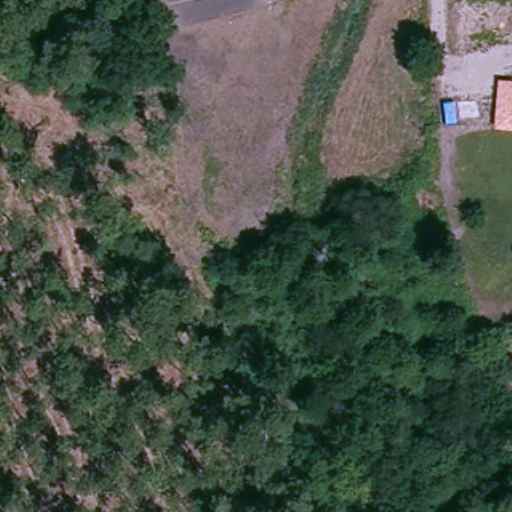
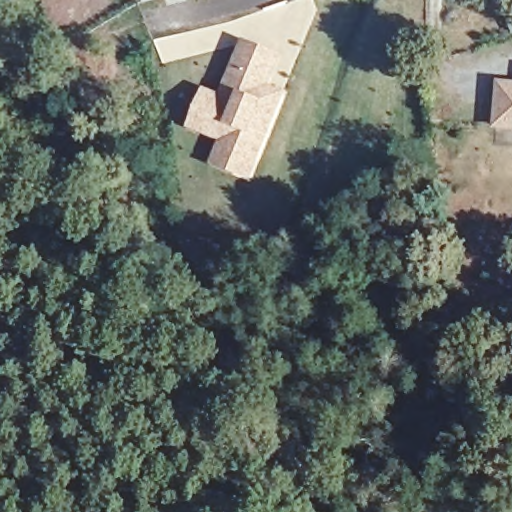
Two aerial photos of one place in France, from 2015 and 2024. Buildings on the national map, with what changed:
new [(209,164),(219,140),(187,128),(204,86),(219,94),(242,38),(283,54),(269,84),(286,91),(250,180),(209,164)]
unchanged [(493,129),(497,80),(512,81),(512,131),(493,129)]

